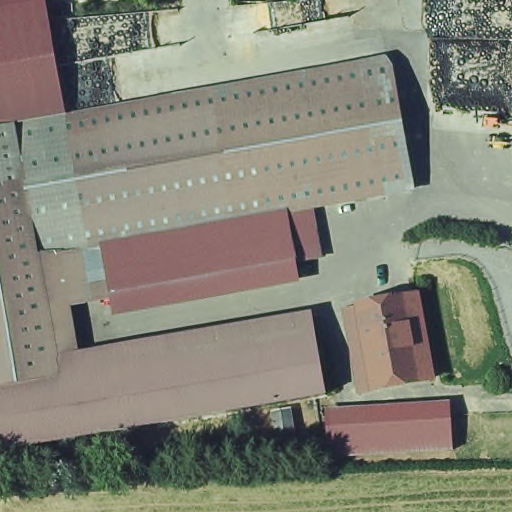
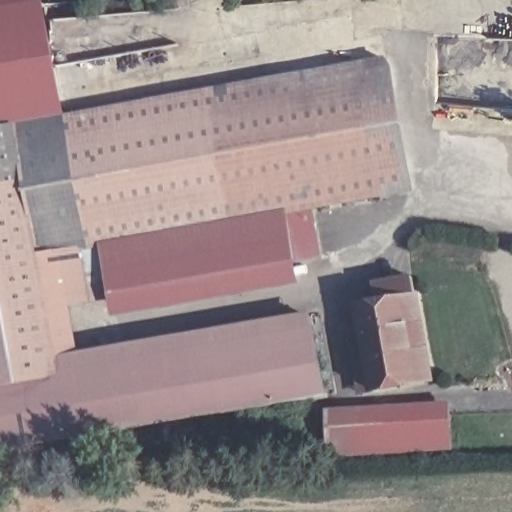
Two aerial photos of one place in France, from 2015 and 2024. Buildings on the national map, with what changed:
unchanged [(68,117),(20,126),(0,130),(0,0),(47,0),(68,117)]
unchanged [(287,206),(297,257),(117,297),(74,309),(82,355),(317,316),(332,399),(0,452),(0,130),(20,126),(68,117),(392,54),(419,191),(287,206)]
unchanged [(440,384),(362,399),(344,309),(423,293),(440,384)]
unchanged [(451,401),(452,446),(333,454),(332,407),(451,401)]

